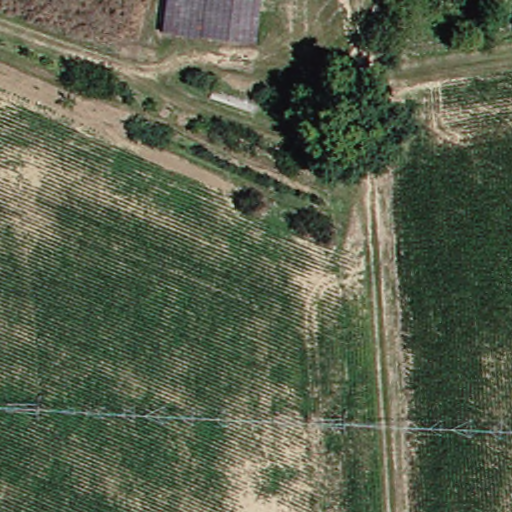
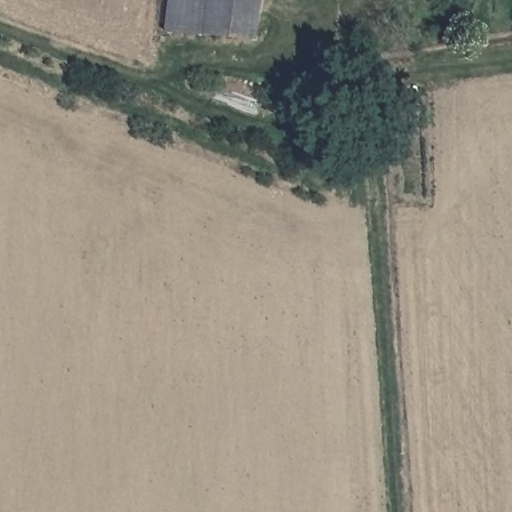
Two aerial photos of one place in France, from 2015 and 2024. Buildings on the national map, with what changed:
unchanged [(254,0),(247,40),(193,32),(161,28),(164,0),(254,0)]

